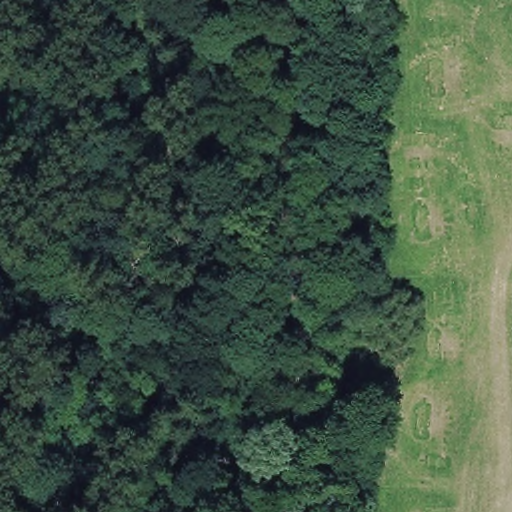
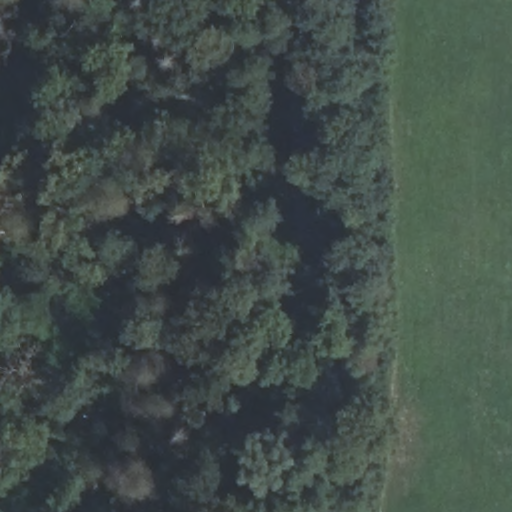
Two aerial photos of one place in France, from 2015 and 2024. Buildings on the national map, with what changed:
[]

